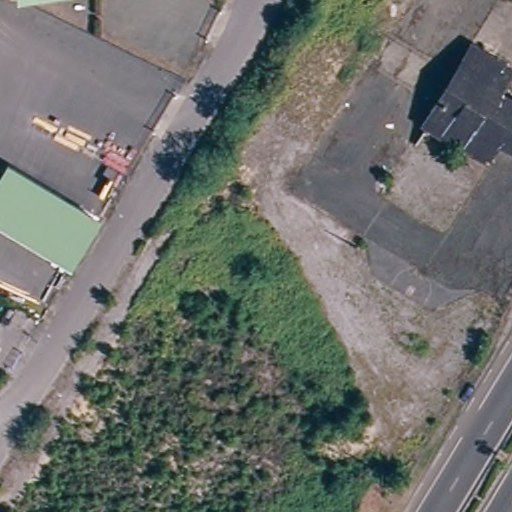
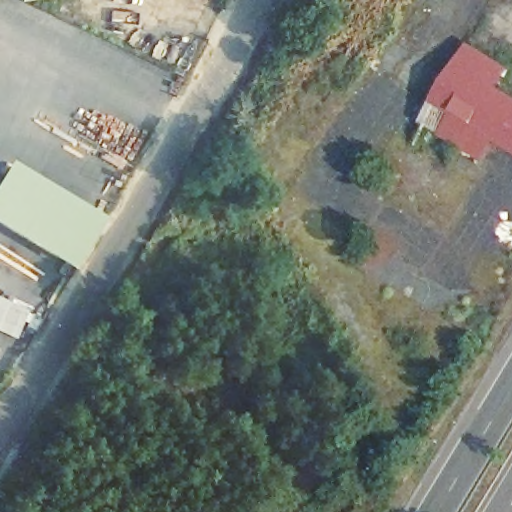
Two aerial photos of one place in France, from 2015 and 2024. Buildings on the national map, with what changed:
unchanged [(503,121),(490,142),(480,157),(423,122),(470,48),(507,72),(497,87),(484,109),(503,121)]
unchanged [(512,96),(512,155),(490,142),(503,121),(484,109),(497,87),(512,96)]
unchanged [(103,216),(71,268),(0,225),(0,177),(10,160),(103,216)]
new [(0,334),(0,300),(27,312),(15,340),(0,334)]

